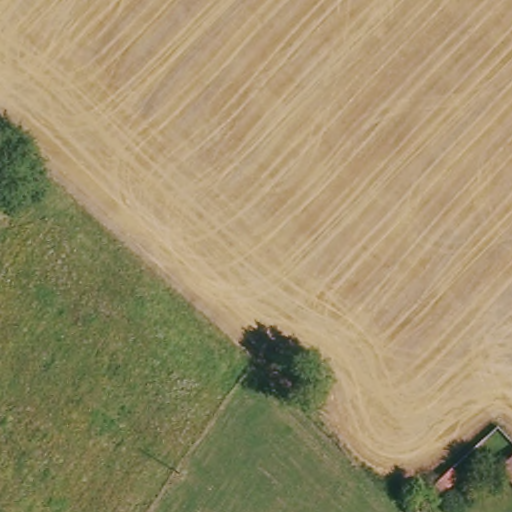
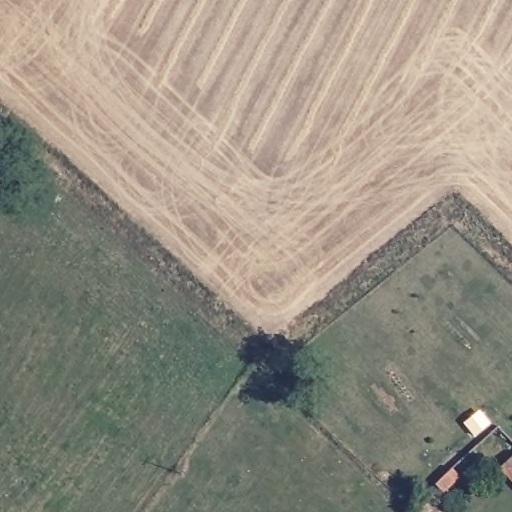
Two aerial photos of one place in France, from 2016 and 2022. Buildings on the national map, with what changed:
unchanged [(460,469),(452,461),(465,448),(467,444),(476,452),(460,469)]
unchanged [(492,468),(498,462),(511,448),(512,449),(512,487),(492,468)]

